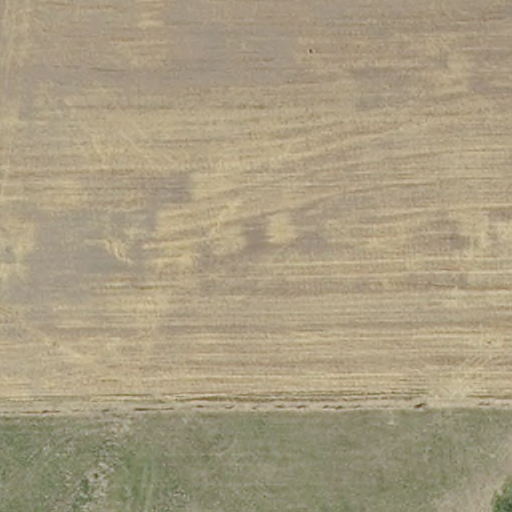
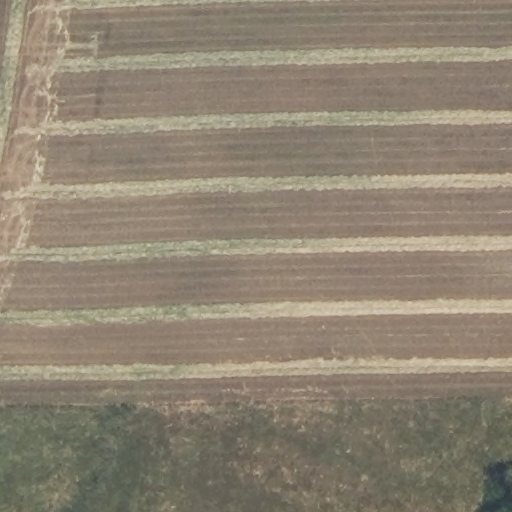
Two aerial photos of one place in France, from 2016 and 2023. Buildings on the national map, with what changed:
[]

